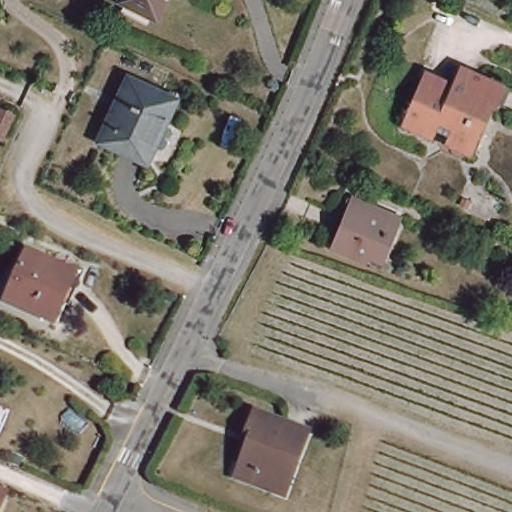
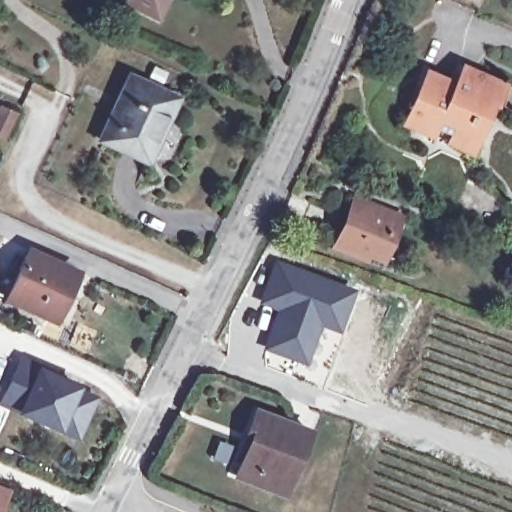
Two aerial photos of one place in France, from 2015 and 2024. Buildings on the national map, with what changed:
unchanged [(154,19),(118,2),(119,0),(163,0),(154,19)]
unchanged [(430,136),(407,126),(431,71),(458,84),(460,80),(467,66),(477,72),(501,82),(507,84),(498,103),(475,155),(470,153),(449,144),(453,136),(440,130),(436,139),(430,136)]
unchanged [(175,100),(147,160),(99,139),(127,79),(175,100)]
unchanged [(10,114),(0,137),(0,136),(0,110),(10,114)]
unchanged [(337,242),(342,232),(357,194),(399,212),(394,225),(400,227),(390,253),(385,262),(337,242)]
unchanged [(77,273),(63,302),(57,300),(49,318),(4,298),(26,250),(77,273)]
new [(275,257),(354,288),(337,332),(322,327),(307,366),(263,348),(275,310),(260,303),(275,257)]
new [(4,392),(18,360),(38,368),(37,371),(73,387),(72,390),(91,398),(75,437),(33,419),(18,412),(23,400),(4,392)]
unchanged [(308,432),(295,466),(285,462),(273,492),(234,477),(249,438),(245,436),(254,411),(308,432)]
unchanged [(20,493),(11,512),(0,512),(0,485),(20,493)]

